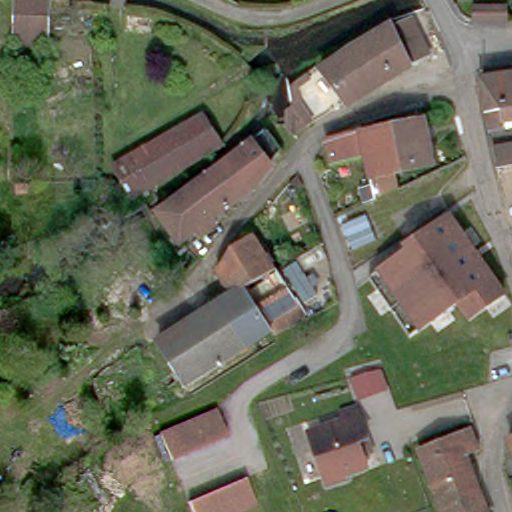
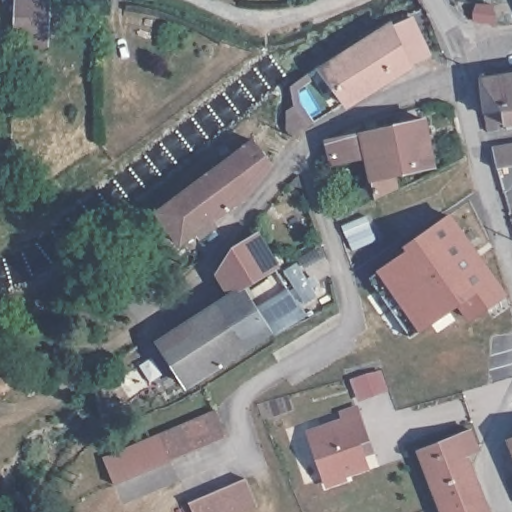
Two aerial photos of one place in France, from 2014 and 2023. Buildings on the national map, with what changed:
unchanged [(15,35),(15,0),(49,0),(48,36),(15,35)]
unchanged [(380,23),(382,25),(399,16),(404,13),(422,51),(418,53),(400,63),(401,65),(392,71),(338,106),(310,67),(380,23)]
unchanged [(480,73),(512,69),(512,125),(507,125),(506,119),(487,122),(485,108),(480,73)]
unchanged [(297,91),(300,109),(315,129),(304,135),(288,114),(292,110),(288,86),(307,72),(312,78),(297,91)]
unchanged [(377,175),(372,149),(339,155),(332,130),(372,121),(431,109),(440,155),(401,164),(404,178),(381,189),(370,193),(367,177),(377,175)]
unchanged [(252,140),(268,128),(282,150),(271,165),(253,189),(180,243),(157,211),(252,140)]
unchanged [(492,145),(512,143),(512,161),(497,163),(492,145)]
unchanged [(470,315),(459,299),(409,332),(370,273),(408,245),(405,240),(448,211),(503,291),(470,315)]
unchanged [(159,333),(232,284),(217,261),(235,236),(256,223),(265,238),(277,258),(288,277),(296,289),(325,270),(336,287),(276,324),(273,321),(187,376),(159,333)]
unchanged [(383,373),(388,389),(375,394),(370,378),(383,373)]
unchanged [(369,469),(347,478),(347,481),(328,489),(308,434),(345,421),(342,414),(358,409),(360,416),(370,441),(360,444),(369,469)]
unchanged [(159,435),(215,410),(225,438),(170,462),(159,435)]
unchanged [(483,450),(471,455),(493,512),(448,512),(425,449),(476,430),(483,450)]
unchanged [(512,433),(512,440),(510,434),(512,433)]
new [(170,462),(113,485),(103,456),(159,435),(170,462)]
unchanged [(243,512),(191,512),(187,503),(244,479),(255,506),(243,512)]

